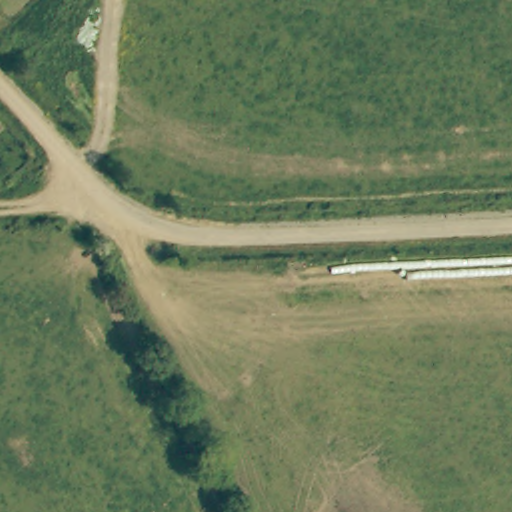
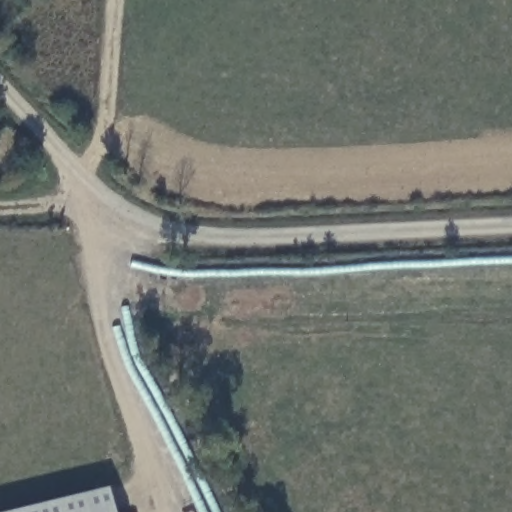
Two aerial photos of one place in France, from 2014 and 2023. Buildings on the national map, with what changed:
new [(114,512),(4,512),(108,487),(114,512)]

